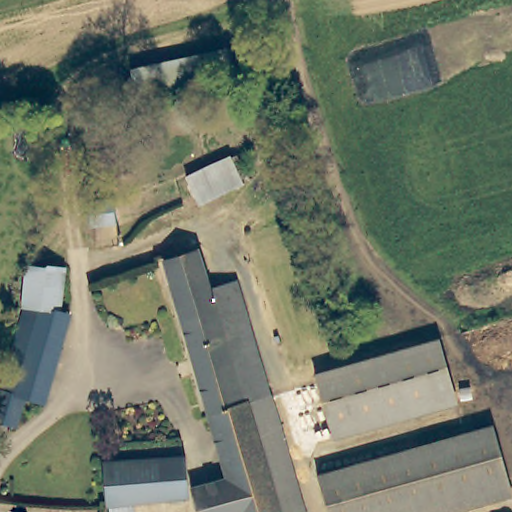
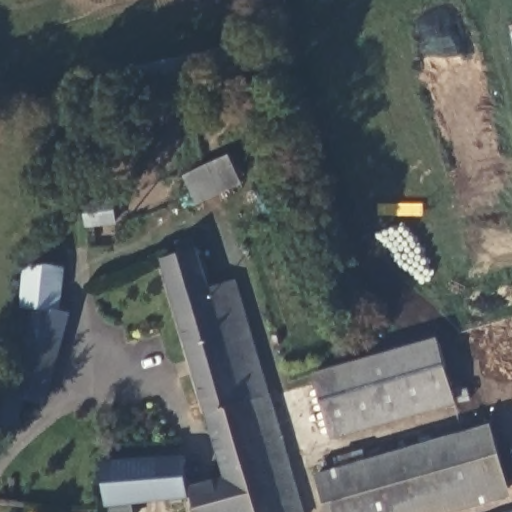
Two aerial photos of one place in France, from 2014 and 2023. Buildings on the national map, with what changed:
unchanged [(227,155),(241,187),(196,209),(181,177),(227,155)]
unchanged [(86,221),(84,201),(111,197),(113,220),(86,221)]
unchanged [(222,478),(160,261),(199,250),(210,288),(234,281),(268,401),(248,406),(275,512),(192,512),(186,491),(222,478)]
unchanged [(37,264),(72,265),(72,307),(36,307),(37,264)]
unchanged [(2,415),(13,385),(29,338),(72,350),(58,397),(39,392),(29,423),(2,415)]
unchanged [(317,376),(442,347),(443,352),(455,400),(330,430),(320,386),(317,376)]
unchanged [(268,401),(300,512),(275,512),(248,406),(268,401)]
unchanged [(494,434),(505,471),(361,512),(328,512),(319,484),(494,434)]
unchanged [(183,501),(106,507),(102,466),(180,460),(183,501)]
unchanged [(436,512),(361,512),(505,471),(511,490),(436,512)]

